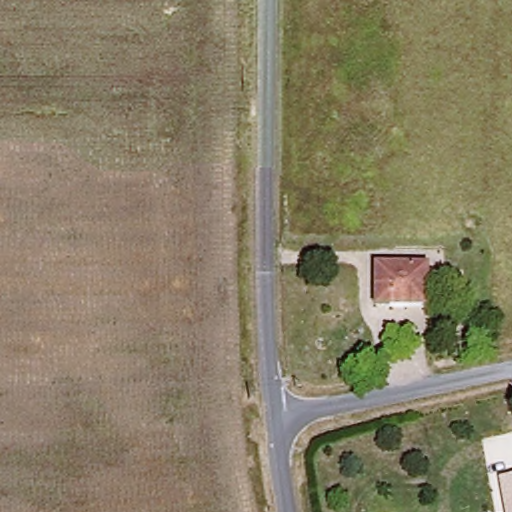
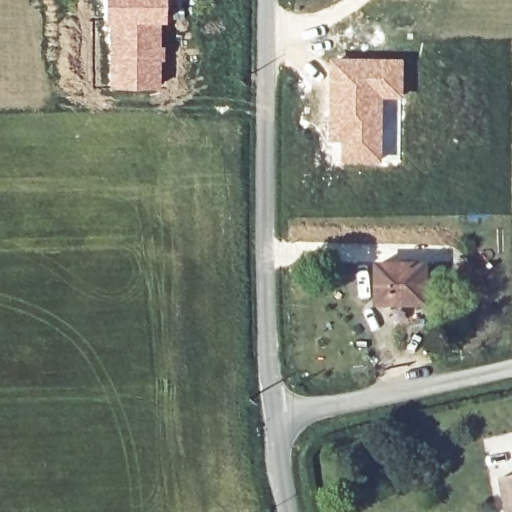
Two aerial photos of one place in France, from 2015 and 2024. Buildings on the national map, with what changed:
new [(165,0),(165,20),(161,21),(160,86),(107,86),(105,18),(105,0),(165,0)]
new [(330,59),(404,59),(403,99),(383,100),(382,165),(341,165),(340,143),(327,143),(330,59)]
unchanged [(430,300),(377,304),(376,265),(428,261),(430,300)]

